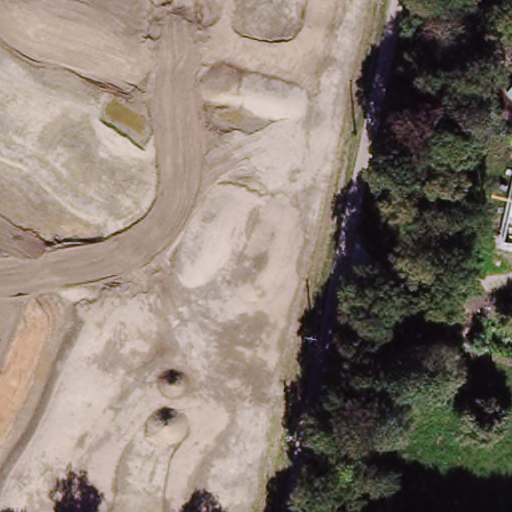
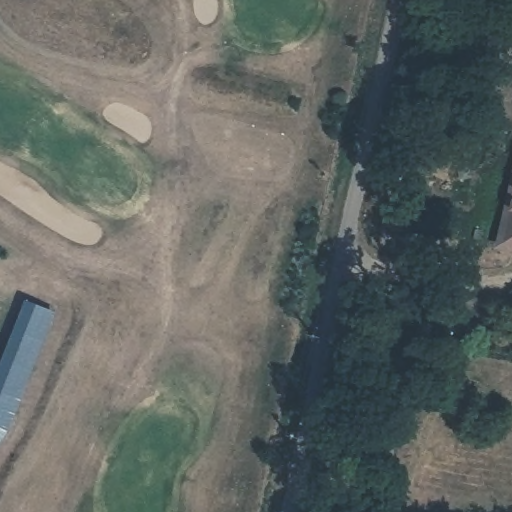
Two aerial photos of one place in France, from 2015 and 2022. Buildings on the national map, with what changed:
unchanged [(512,218),(512,229),(510,229),(512,218)]
new [(28,305),(62,319),(10,440),(0,453),(0,368),(28,305)]

